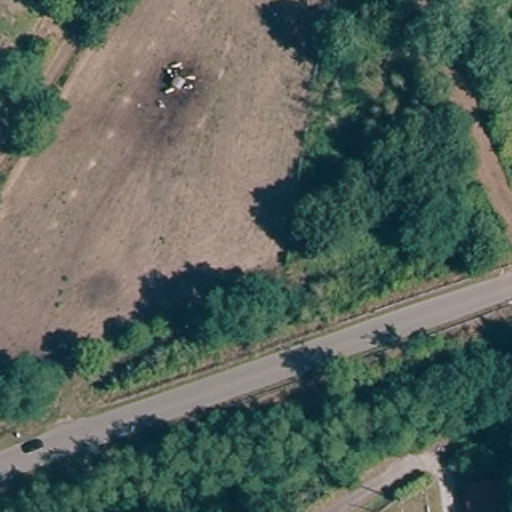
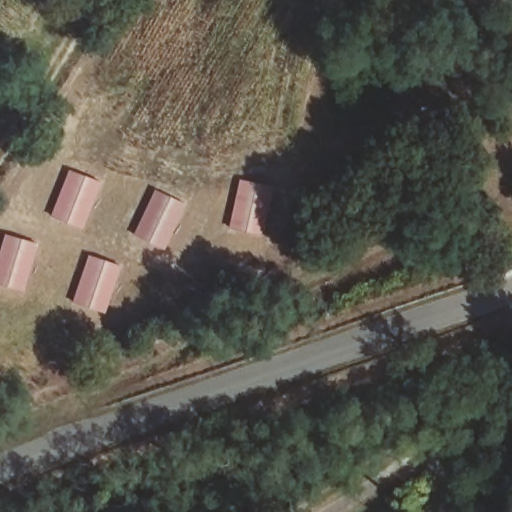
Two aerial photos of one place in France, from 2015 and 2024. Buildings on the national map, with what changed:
new [(101,181),(83,229),(51,216),(69,170),(101,181)]
new [(274,187),(263,236),(229,229),(240,179),(274,187)]
new [(187,205),(165,251),(133,235),(155,189),(187,205)]
new [(39,245),(24,293),(0,285),(0,252),(5,234),(39,245)]
new [(122,265),(106,313),(73,303),(89,255),(122,265)]

